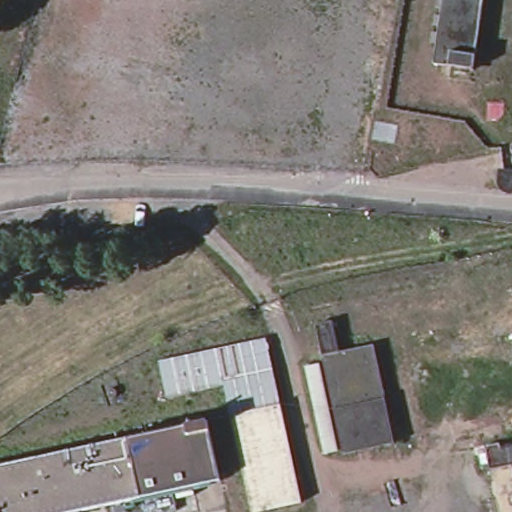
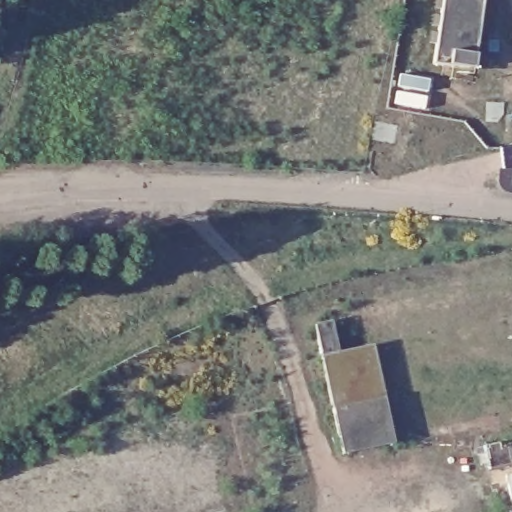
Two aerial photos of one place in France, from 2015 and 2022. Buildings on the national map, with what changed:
demolished [(226,0),(280,0),(259,135),(206,127),(226,0)]
unchanged [(446,0),(485,0),(473,67),(437,61),(446,0)]
demolished [(32,42),(31,47),(23,45),(24,40),(32,42)]
unchanged [(318,325),(334,320),(341,348),(375,344),(394,443),(344,452),(318,325)]
demolished [(161,400),(153,366),(266,341),(301,501),(249,512),(222,387),(161,400)]
demolished [(38,457),(205,420),(219,479),(72,512),(0,512),(0,465),(38,457)]
unchanged [(512,465),(512,512),(499,512),(489,471),(512,465)]

